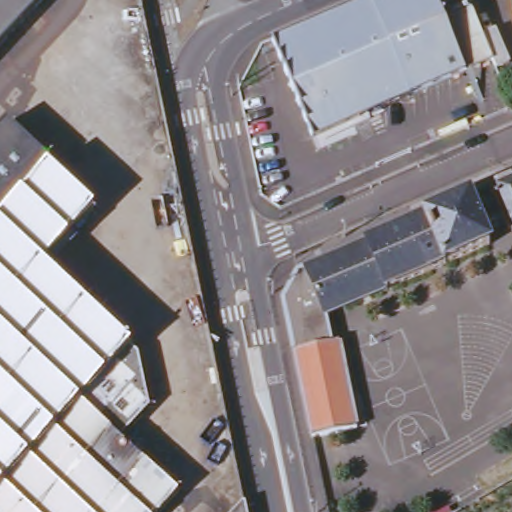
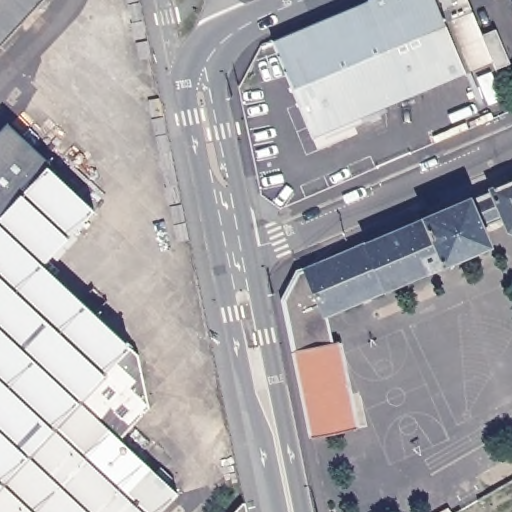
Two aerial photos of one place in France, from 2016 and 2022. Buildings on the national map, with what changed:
unchanged [(0,42),(0,0),(39,0),(0,42)]
unchanged [(496,27),(512,61),(496,67),(493,59),(315,135),(275,41),(368,0),(468,0),(482,33),(496,27)]
unchanged [(47,166),(93,210),(39,268),(137,361),(145,410),(116,439),(148,468),(153,463),(167,477),(162,482),(172,492),(172,496),(158,512),(0,512),(0,127),(8,119),(52,161),(47,166)]
unchanged [(279,299),(293,272),(420,218),(420,216),(465,197),(466,199),(485,190),(485,188),(512,177),(512,232),(510,232),(502,231),(498,222),(480,230),(485,243),(321,313),(327,341),(333,338),(350,427),(306,436),(279,299)]
unchanged [(450,512),(432,512),(445,505),(450,512)]
unchanged [(235,512),(241,506),(242,512),(235,512)]

